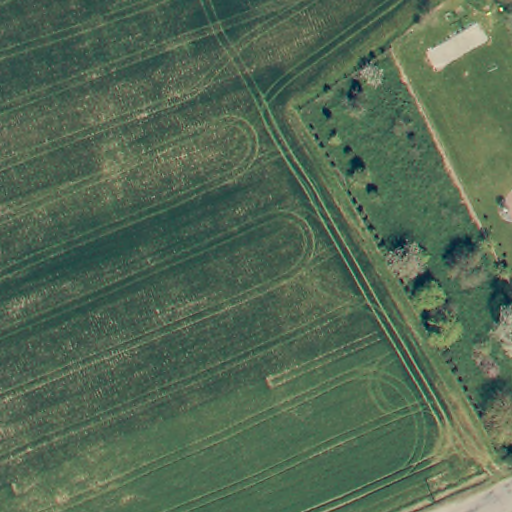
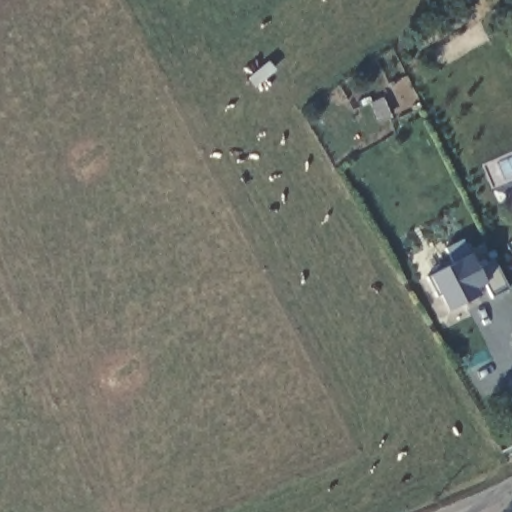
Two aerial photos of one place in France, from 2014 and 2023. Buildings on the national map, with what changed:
new [(492,297),(485,284),(475,288),(479,295),(448,311),(429,275),(453,263),(444,248),(463,239),(470,254),(478,269),(494,260),(509,288),(492,297)]

